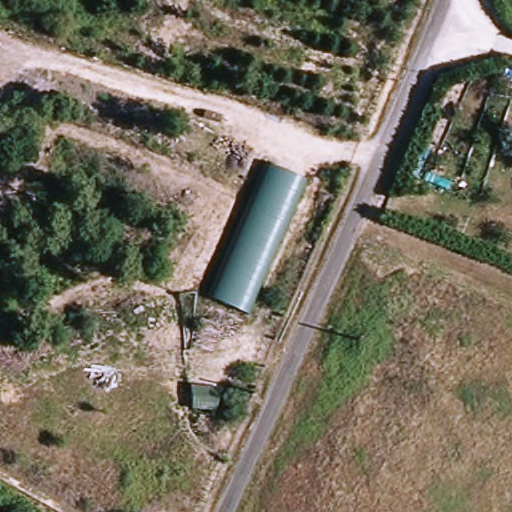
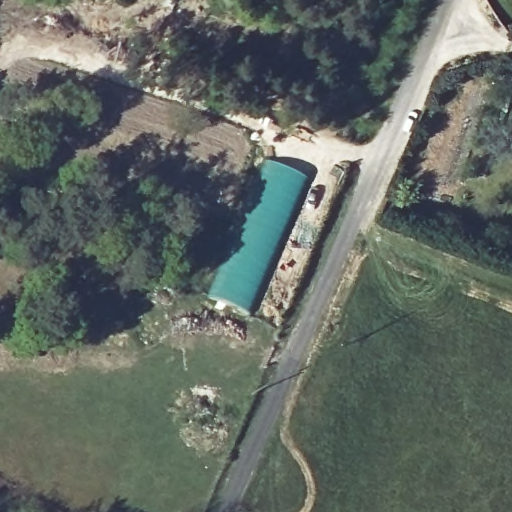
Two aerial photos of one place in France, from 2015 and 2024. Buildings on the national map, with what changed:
unchanged [(262,162),(307,179),(251,315),(205,293),(262,162)]

